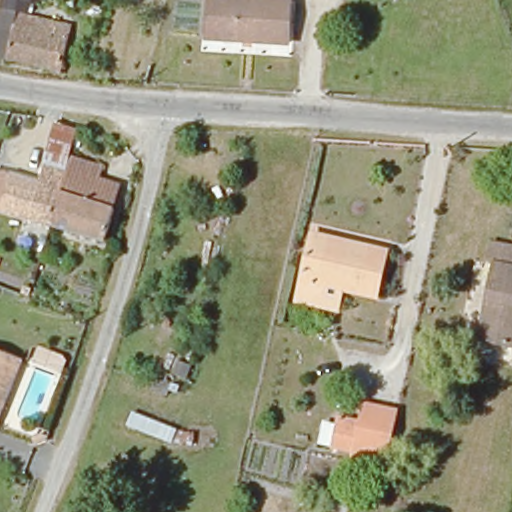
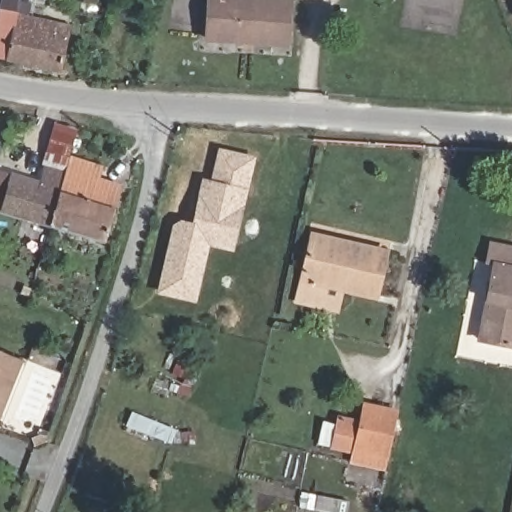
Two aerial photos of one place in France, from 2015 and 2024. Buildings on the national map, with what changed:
unchanged [(49,21),(48,28),(70,35),(59,74),(0,60),(0,0),(31,0),(28,17),(49,21)]
unchanged [(205,41),(205,0),(288,0),(287,43),(205,41)]
unchanged [(77,130),(71,152),(67,152),(62,174),(41,169),(54,124),(77,130)]
demolished [(252,165),(216,159),(222,124),(261,128),(252,165)]
new [(211,247),(197,303),(157,295),(174,225),(181,220),(192,222),(204,177),(211,180),(219,148),(257,156),(250,190),(235,252),(211,247)]
unchanged [(71,152),(96,160),(91,192),(112,196),(102,239),(49,226),(62,174),(67,152),(71,152)]
unchanged [(0,186),(31,193),(37,168),(41,169),(62,174),(49,226),(0,213),(0,186)]
unchanged [(377,288),(345,284),(338,318),(338,322),(299,315),(296,315),(309,240),(311,232),(317,233),(348,239),(386,245),(377,288)]
unchanged [(512,245),(512,347),(478,341),(492,268),(482,265),(487,240),(512,245)]
unchanged [(12,391),(0,386),(0,351),(22,361),(12,391)]
unchanged [(0,421),(0,386),(12,391),(0,421)]
unchanged [(344,473),(347,456),(322,451),(328,417),(355,422),(360,402),(397,407),(382,481),(344,473)]

